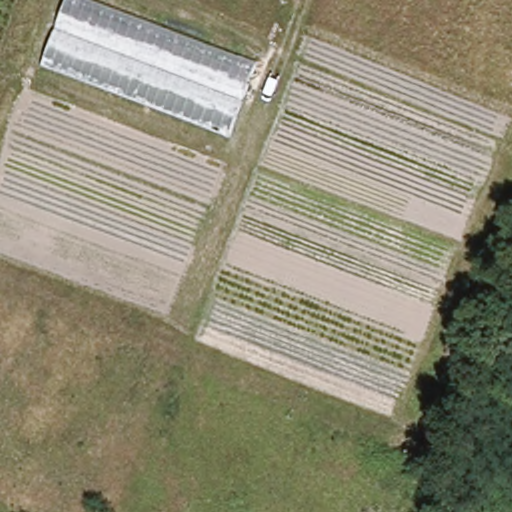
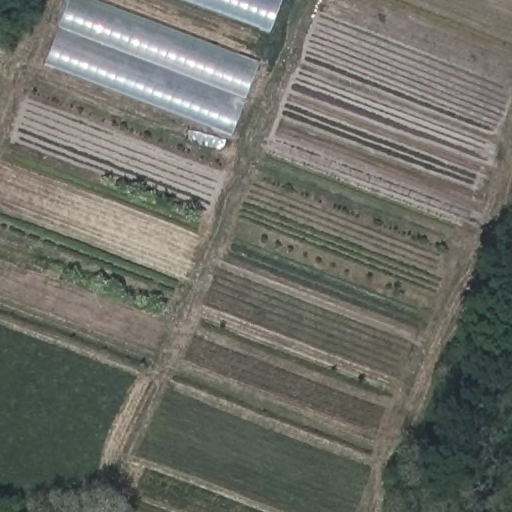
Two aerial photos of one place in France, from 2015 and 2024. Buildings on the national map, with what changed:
unchanged [(43,66),(68,0),(95,0),(259,62),(232,135),(43,66)]
new [(187,0),(281,0),(269,31),(187,0)]

